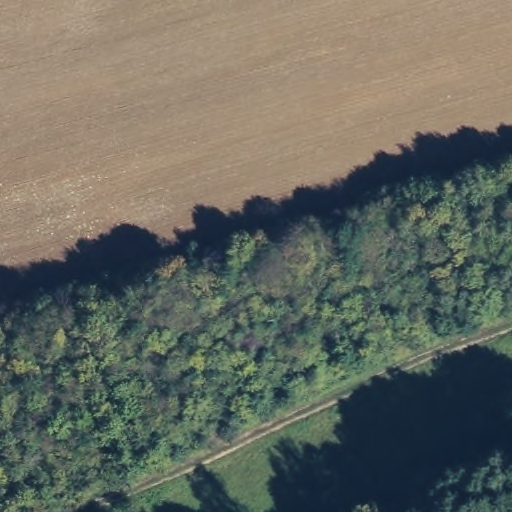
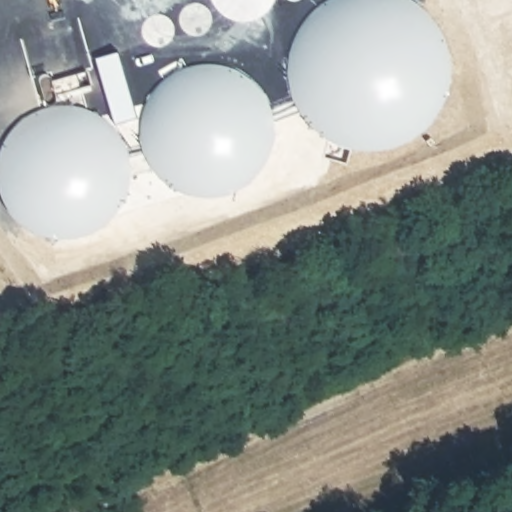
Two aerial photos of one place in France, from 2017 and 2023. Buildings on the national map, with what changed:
new [(298,26),(308,11),(319,0),(422,0),(434,11),(444,26),(451,43),(454,61),(453,79),(448,96),(439,111),(428,125),(413,136),(397,144),(379,148),(361,147),(344,144),(328,136),(314,125),(302,111),(294,96),(289,79),(288,60),(291,43),(298,26)]
new [(118,48),(139,115),(117,121),(98,54),(118,48)]
new [(142,118),(146,103),(153,89),(164,76),(177,68),(192,61),(208,60),(223,62),(238,68),(251,76),(263,89),(270,103),(274,118),(274,135),(269,150),(263,164),(251,176),(238,185),(223,190),(208,192),(191,190),(177,185),(164,176),(153,164),(146,150),(142,134),(142,118)]
new [(3,145),(11,131),(21,120),(34,110),(50,105),(65,103),(81,105),(96,110),(109,120),(119,131),(127,145),(131,161),(131,177),(128,193),(120,207),(109,219),(96,228),(81,233),(65,235),(49,233),(34,227),(21,219),(11,206),(3,192),(0,178),(0,159),(3,145)]

